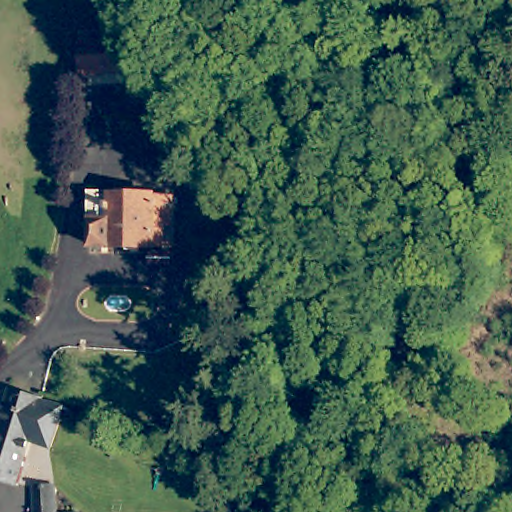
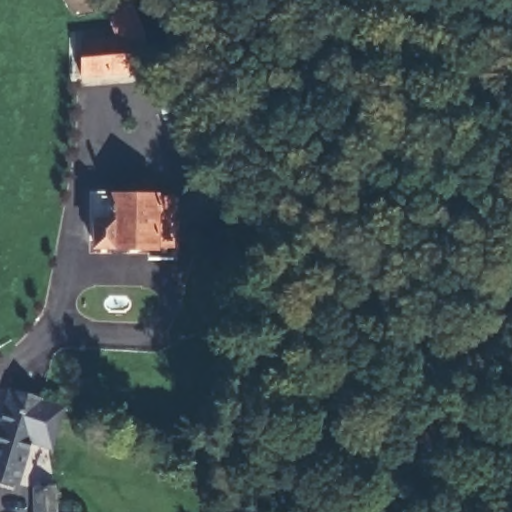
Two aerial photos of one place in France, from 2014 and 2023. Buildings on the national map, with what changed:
unchanged [(136,36),(139,71),(87,76),(87,48),(87,39),(136,36)]
unchanged [(166,197),(167,244),(85,244),(85,197),(166,197)]
unchanged [(39,397),(14,488),(0,483),(0,413),(7,388),(39,397)]
unchanged [(38,488),(59,488),(61,512),(39,512),(38,488)]

